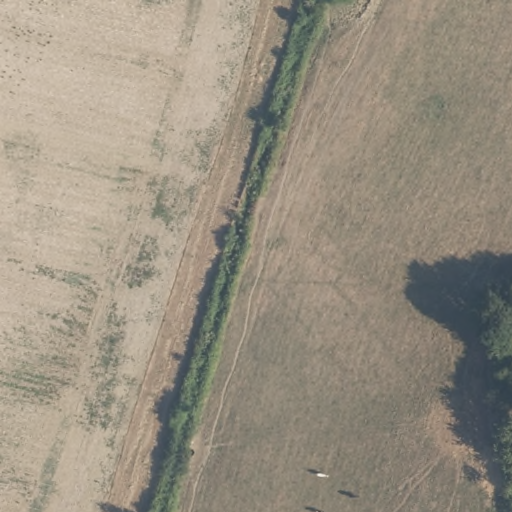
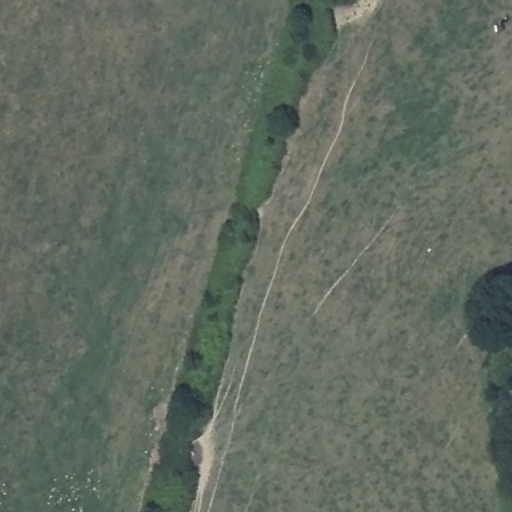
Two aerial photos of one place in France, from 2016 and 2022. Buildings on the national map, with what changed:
[]

